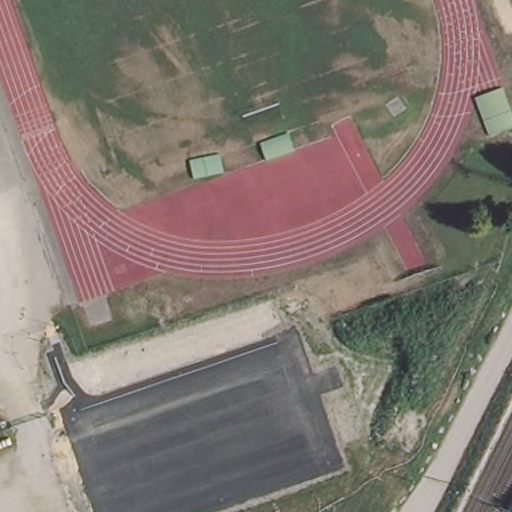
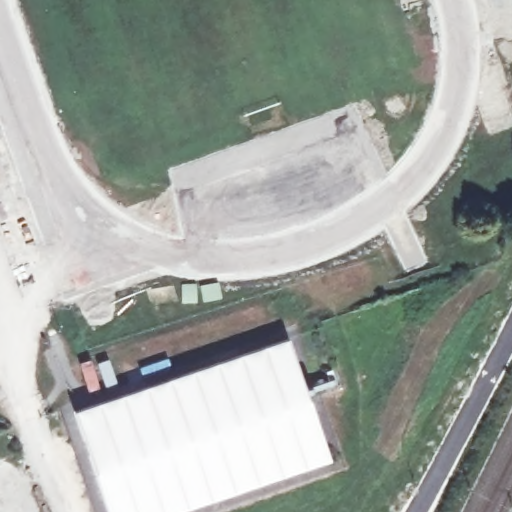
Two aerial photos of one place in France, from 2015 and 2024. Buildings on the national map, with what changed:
unchanged [(491,140),(477,99),(506,90),(512,107),(512,132),(491,140)]
new [(176,512),(109,512),(76,412),(288,340),(330,460),(176,512)]

